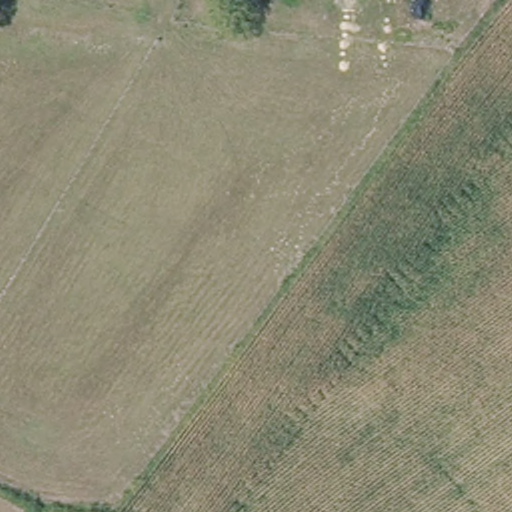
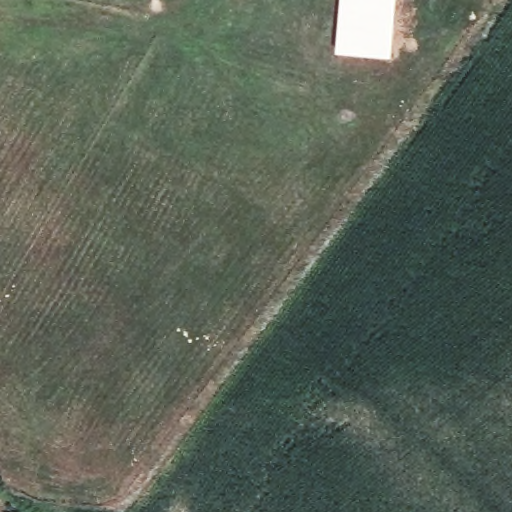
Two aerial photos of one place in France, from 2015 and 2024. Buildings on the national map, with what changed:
new [(393,58),(336,54),(341,0),(397,0),(393,58)]

